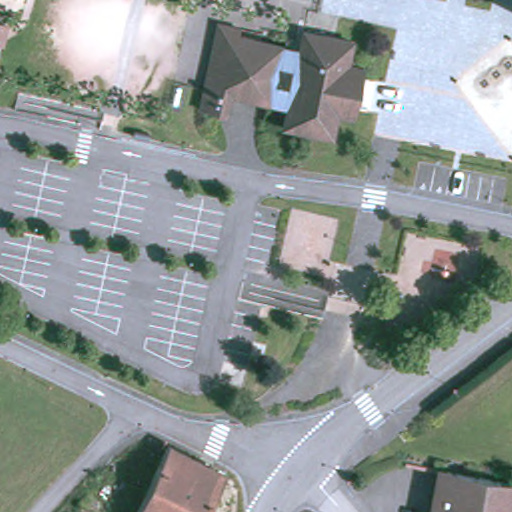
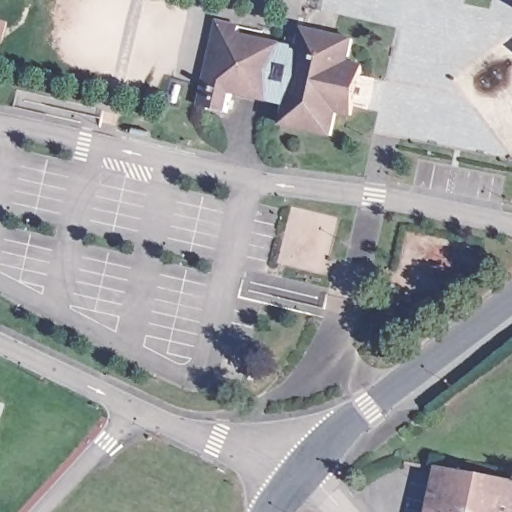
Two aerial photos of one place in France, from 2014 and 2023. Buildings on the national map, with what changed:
unchanged [(298,26),(347,36),(342,60),(356,63),(345,112),(330,108),(325,132),(277,121),(280,102),(223,89),(220,108),(194,103),(198,82),(212,18),(235,23),(233,32),(293,45),(298,26)]
new [(4,44),(0,43),(0,20),(10,22),(4,44)]
demolished [(173,442),(229,468),(208,512),(138,512),(173,442)]
unchanged [(443,469),(512,482),(512,512),(436,512),(443,469)]

